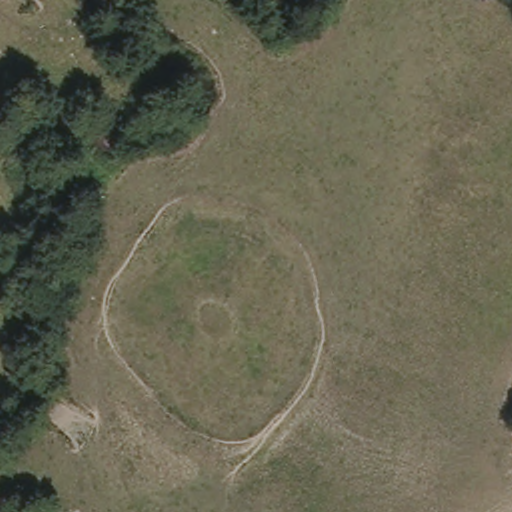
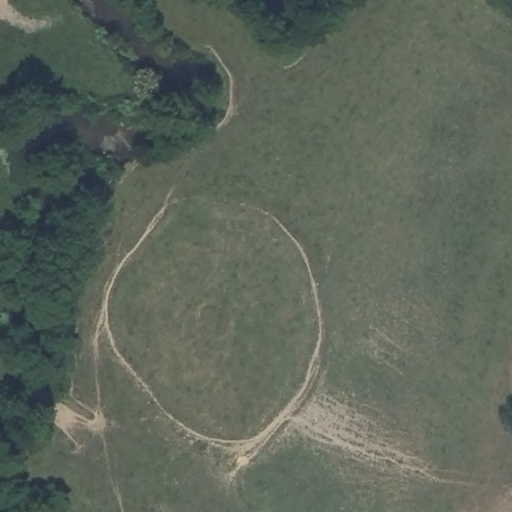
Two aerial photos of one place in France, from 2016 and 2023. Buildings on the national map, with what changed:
[]

